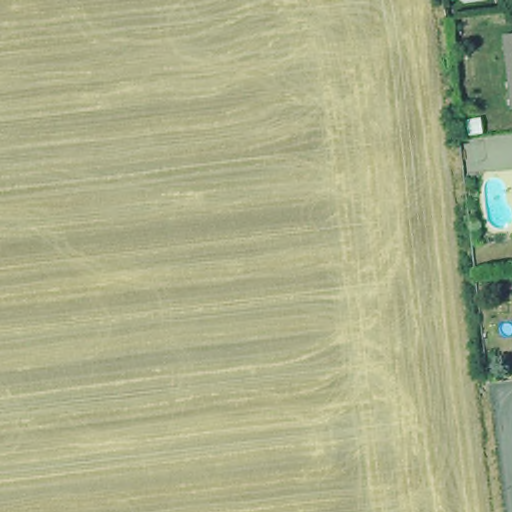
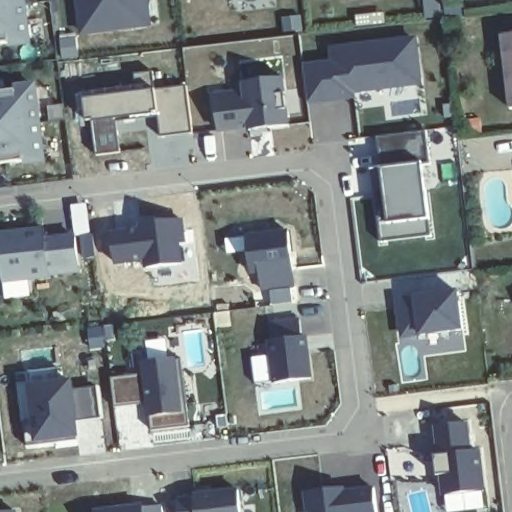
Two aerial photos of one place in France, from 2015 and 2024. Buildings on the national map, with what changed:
new [(0,43),(0,0),(24,0),(29,40),(0,43)]
new [(79,37),(74,0),(145,0),(149,31),(79,37)]
new [(302,67),(329,64),(327,49),(415,40),(419,89),(353,96),(353,101),(307,107),(302,67)]
unchanged [(512,40),(512,57),(510,41),(512,40)]
new [(249,131),(220,135),(215,93),(244,90),(244,83),(285,78),(292,127),(249,131)]
new [(159,138),(157,119),(114,122),(117,156),(94,158),(90,126),(82,127),(79,101),(184,88),(190,136),(159,138)]
new [(0,164),(0,93),(37,89),(45,159),(0,164)]
new [(427,165),(416,166),(426,238),(379,242),(370,172),(380,171),(376,139),(423,132),(427,165)]
new [(139,227),(138,219),(182,218),(184,263),(146,267),(145,262),(113,266),(107,232),(139,227)]
new [(77,235),(81,275),(51,278),(2,283),(0,262),(0,233),(44,227),(46,237),(77,235)]
new [(262,289),(260,272),(251,273),(247,239),(290,234),(293,268),(294,286),(262,289)]
new [(457,334),(415,338),(415,336),(400,338),(395,298),(452,292),(457,334)]
new [(299,323),(301,341),(305,340),(310,382),(274,386),(269,345),(273,344),(271,327),(299,323)]
new [(182,359),(191,427),(152,432),(151,420),(149,407),(116,410),(112,379),(146,376),(145,363),(174,360),(182,359)]
new [(101,421),(77,423),(77,437),(78,442),(29,447),(26,422),(35,420),(32,387),(73,382),(74,391),(98,389),(101,421)]
new [(477,452),(482,490),(445,496),(444,477),(438,477),(436,457),(440,456),(437,428),(466,424),(470,453),(477,452)]
new [(375,512),(307,512),(306,495),(342,490),(343,493),(372,491),(375,512)]
new [(180,502),(197,500),(197,496),(239,492),(241,512),(181,512),(180,502)]
new [(162,512),(91,512),(91,509),(142,505),(161,503),(162,512)]

